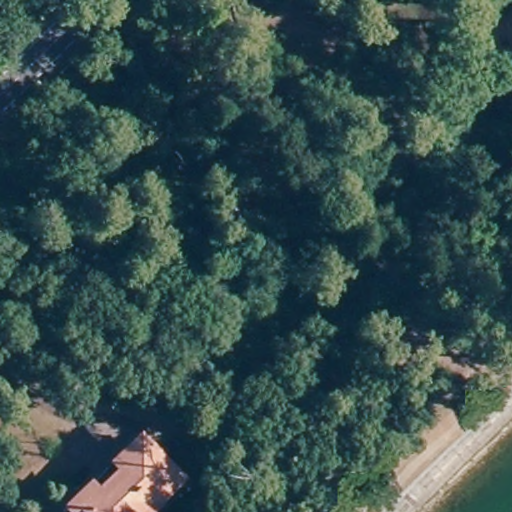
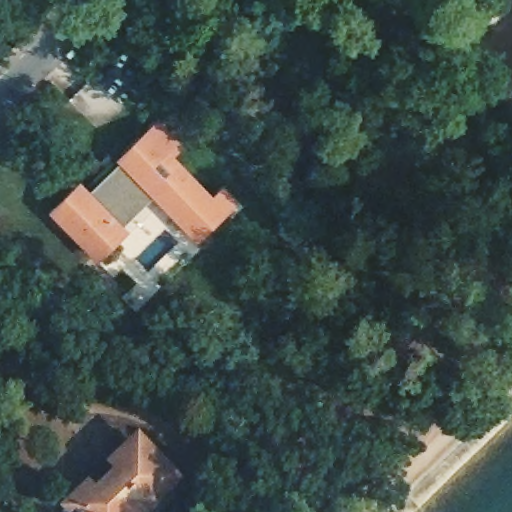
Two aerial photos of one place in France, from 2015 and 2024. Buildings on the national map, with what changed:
new [(198,244),(153,197),(124,225),(131,232),(100,265),(51,213),(81,182),(91,192),(121,163),(117,160),(159,119),(186,146),(176,156),(215,196),(224,186),(240,204),(198,244)]
unchanged [(188,484),(158,512),(56,512),(54,509),(89,479),(95,486),(107,472),(101,465),(136,435),(188,484)]

